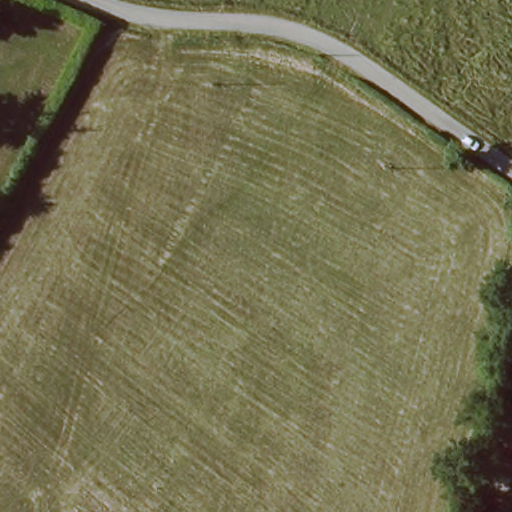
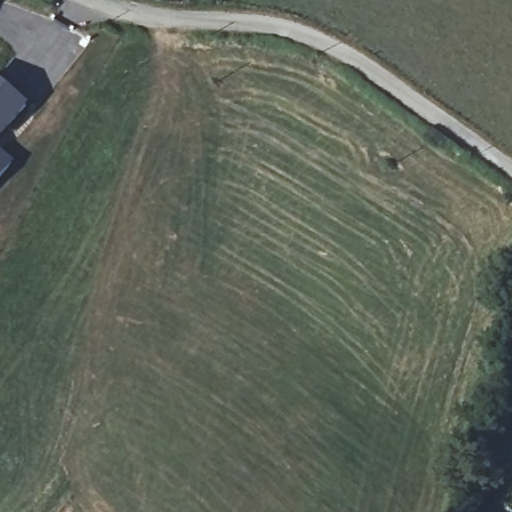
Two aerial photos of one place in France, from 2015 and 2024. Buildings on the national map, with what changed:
new [(0,134),(0,81),(26,102),(0,134)]

